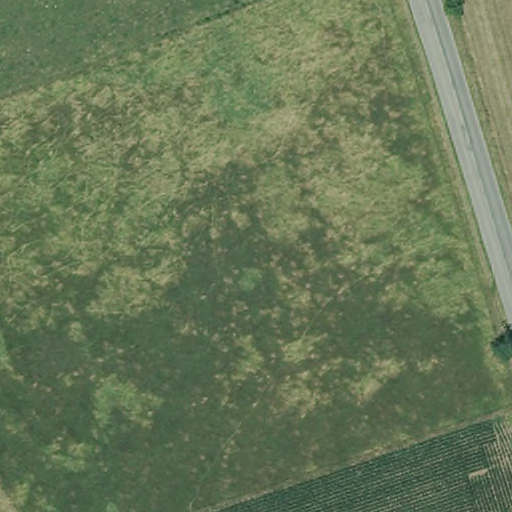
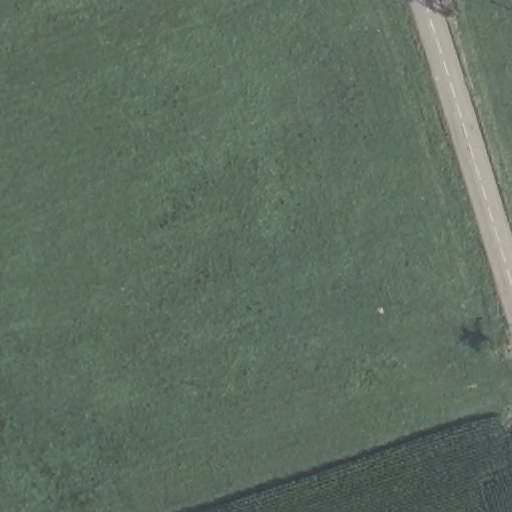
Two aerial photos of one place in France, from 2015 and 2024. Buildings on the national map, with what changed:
[]

